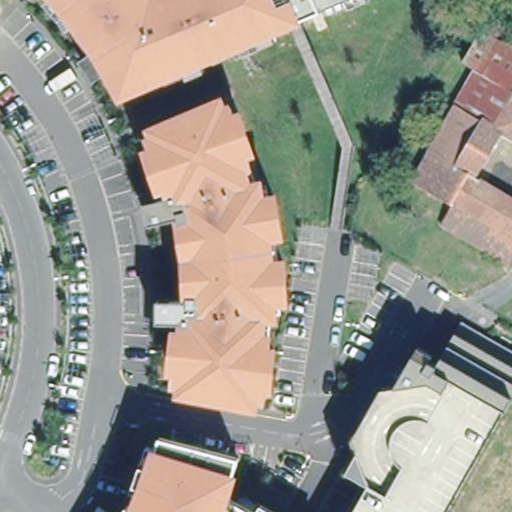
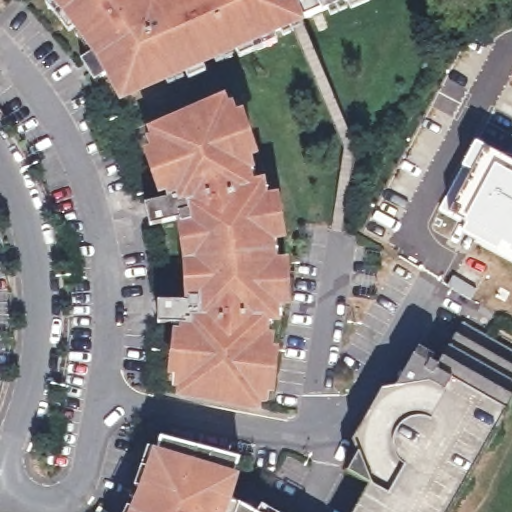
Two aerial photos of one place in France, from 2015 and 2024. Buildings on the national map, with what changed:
unchanged [(166,80),(123,98),(110,74),(104,78),(90,56),(97,52),(92,46),(87,50),(82,43),(87,39),(86,38),(81,42),(76,35),(81,31),(77,26),(70,32),(47,4),(51,0),(153,0),(155,2),(158,0),(370,0),(371,3),(351,11),(348,3),(345,4),(348,10),(331,17),(329,11),(289,28),(291,34),(284,38),(281,31),(274,34),(278,43),(240,59),(236,50),(230,53),(233,59),(217,65),(215,59),(202,64),(206,73),(189,81),(185,72),(182,73),(185,79),(169,86),(166,80)]
demolished [(476,70),(464,62),(482,32),(485,33),(487,30),(492,32),(490,36),(512,49),(512,139),(500,133),(474,177),(512,198),(512,258),(508,265),(440,225),(453,201),(412,177),(476,70)]
unchanged [(274,352),(270,392),(264,391),(263,402),(256,401),(255,410),(180,395),(181,385),(175,385),(177,375),(171,374),(176,334),(181,335),(182,325),(157,325),(157,303),(188,303),(188,298),(186,262),(180,225),(180,220),(150,227),(145,206),(170,200),(166,190),(161,192),(149,154),(154,152),(150,143),(156,141),(153,132),(223,103),(226,111),(232,109),(235,119),(241,117),(254,155),(249,157),(251,167),(245,169),(250,189),(261,186),(261,188),(266,218),(272,258),(275,318),(275,321),(265,321),(263,341),(270,342),(268,352),(274,352)]
new [(503,242),(498,251),(465,233),(470,224),(448,214),(472,169),(463,165),(475,142),(512,161),(512,246),(503,242)]
unchanged [(270,200),(275,199),(281,238),(276,239),(278,252),(278,265),(284,265),(286,305),(280,305),(281,318),(275,318),(272,258),(266,218),(261,188),(267,188),(270,200)]
unchanged [(373,482),(350,469),(361,451),(356,438),(386,388),(398,385),(400,385),(411,365),(423,345),(438,354),(435,360),(441,364),(466,320),(490,333),(512,346),(512,406),(451,512),(356,512),(370,486),(373,482)]
unchanged [(130,503),(139,483),(147,486),(151,475),(155,466),(145,463),(151,443),(161,447),(165,435),(242,456),(236,476),(231,495),(260,511),(265,502),(283,512),(136,512),(139,506),(130,503)]

